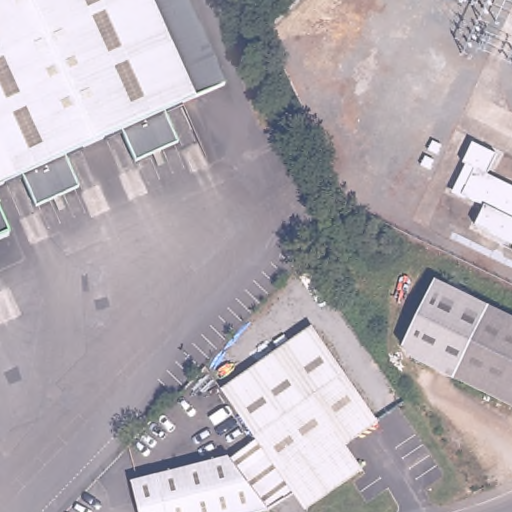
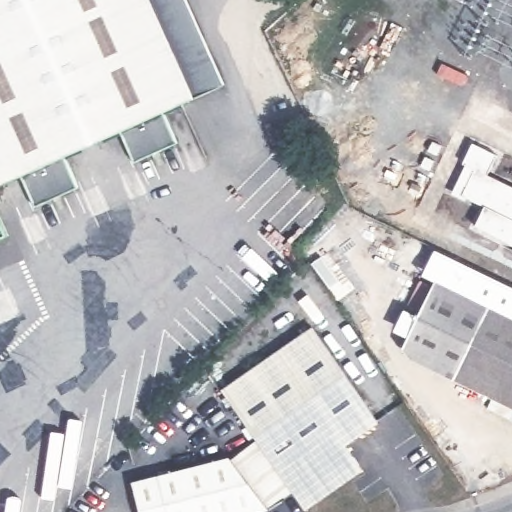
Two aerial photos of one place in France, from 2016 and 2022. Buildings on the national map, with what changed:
unchanged [(167,112),(180,142),(137,162),(123,130),(66,156),(80,187),(38,206),(24,176),(0,186),(0,0),(155,0),(198,98),(167,112)]
unchanged [(477,221),(486,202),(463,191),(476,164),(464,157),(473,139),(497,151),(488,169),(512,181),(512,238),(477,221)]
unchanged [(0,240),(0,204),(13,234),(0,240)]
unchanged [(454,380),(411,358),(405,347),(437,282),(490,307),(512,318),(512,407),(454,380)]
unchanged [(222,385),(244,370),(313,323),(378,418),(345,442),(362,467),(304,506),(275,462),(222,385)]
unchanged [(138,480),(234,454),(272,506),(247,512),(146,512),(138,480)]

